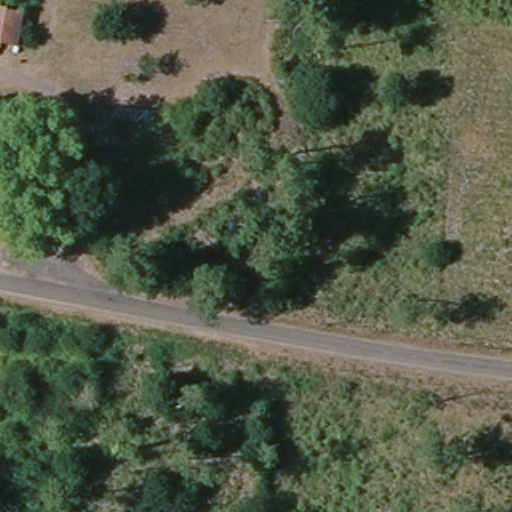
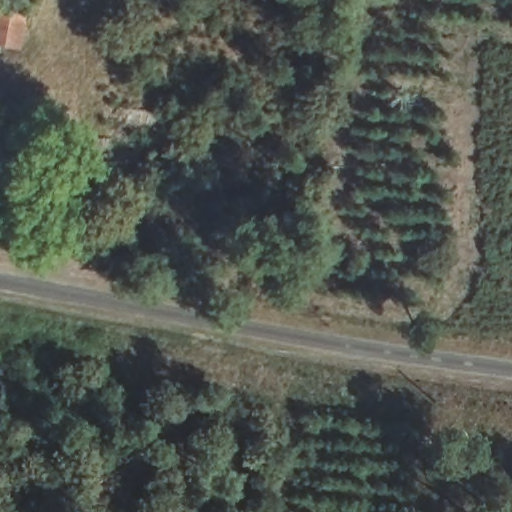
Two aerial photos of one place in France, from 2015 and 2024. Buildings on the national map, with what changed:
unchanged [(24,13),(17,50),(0,47),(0,9),(24,13)]

